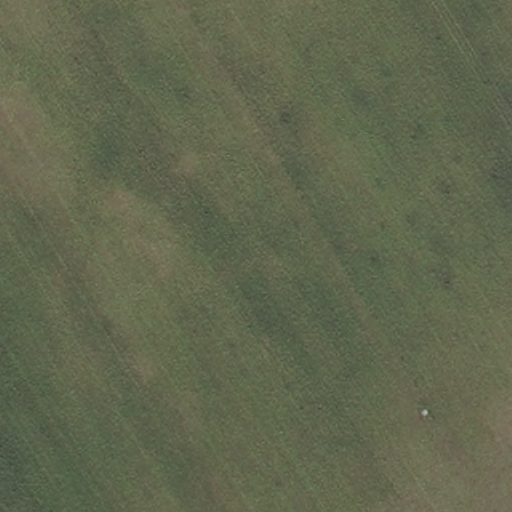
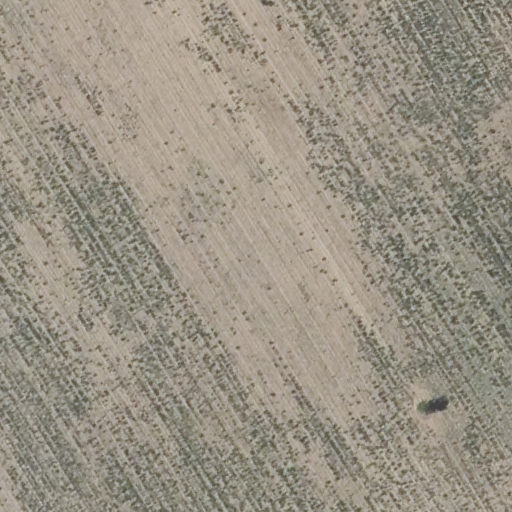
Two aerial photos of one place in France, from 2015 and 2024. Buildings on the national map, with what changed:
[]

